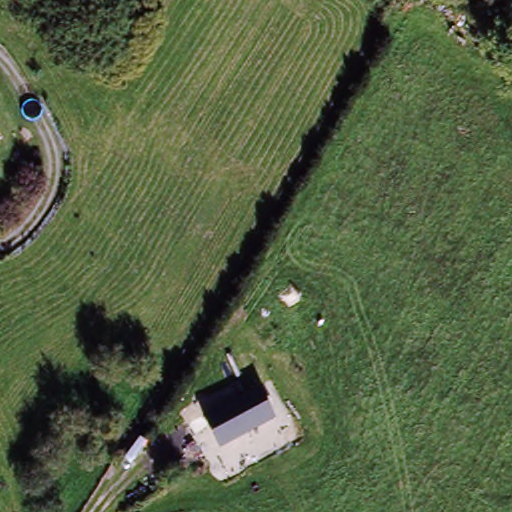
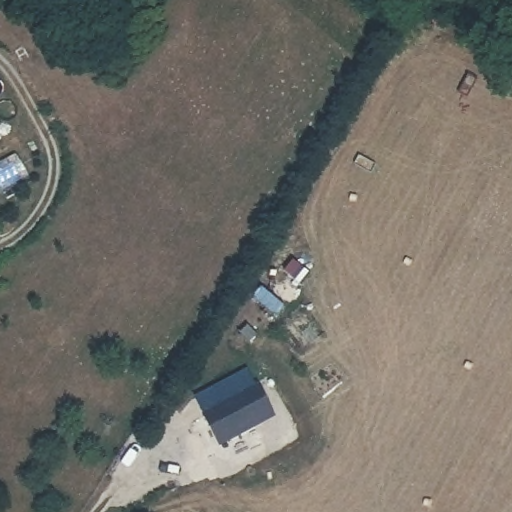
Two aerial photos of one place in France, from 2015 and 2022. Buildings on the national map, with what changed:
unchanged [(275,418),(219,446),(204,412),(259,383),(275,418)]

